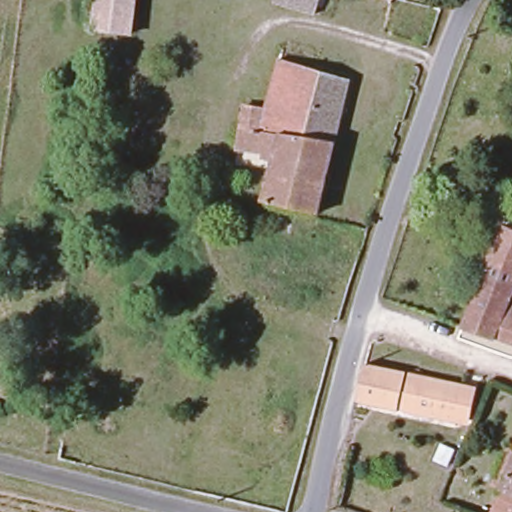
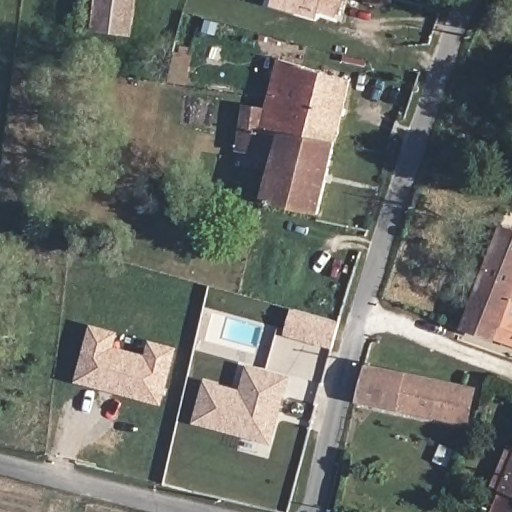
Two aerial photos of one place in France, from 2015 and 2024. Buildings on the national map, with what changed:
unchanged [(97,36),(102,0),(138,0),(133,42),(97,36)]
unchanged [(276,4),(277,0),(321,0),(316,15),(276,4)]
unchanged [(320,143),(317,155),(257,139),(264,114),(287,31),(365,52),(340,148),(320,143)]
unchanged [(321,220),(255,202),(265,165),(253,161),(254,155),(231,150),(241,108),(264,114),(257,139),(317,155),(320,143),(340,148),(321,220)]
unchanged [(460,330),(495,229),(512,235),(512,350),(460,330)]
new [(289,309),(340,322),(332,349),(282,335),(289,309)]
new [(147,340),(174,346),(161,407),(75,382),(90,324),(117,332),(113,347),(144,354),(147,340)]
new [(272,445),(193,424),(206,380),(240,389),(247,365),(291,376),(272,445)]
unchanged [(463,394),(457,429),(358,409),(367,374),(463,394)]
unchanged [(512,466),(512,512),(492,512),(512,466)]

